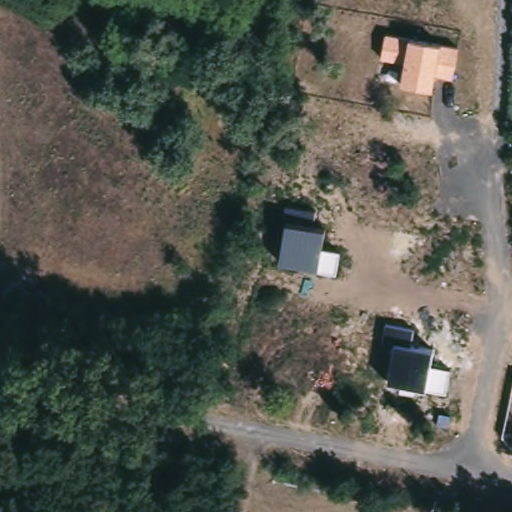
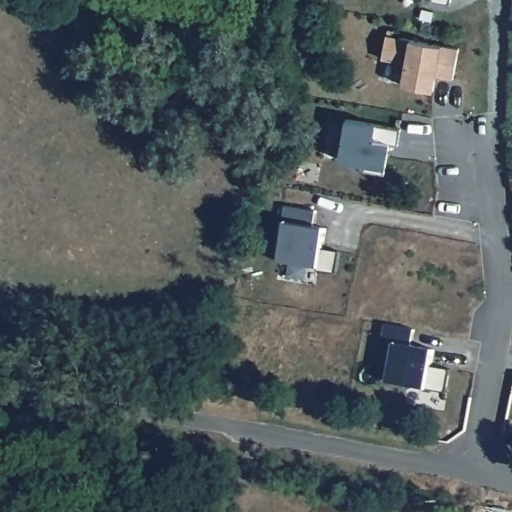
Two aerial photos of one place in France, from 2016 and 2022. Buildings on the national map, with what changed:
new [(448,4),(430,1),(430,0),(449,0),(448,4)]
unchanged [(458,46),(451,79),(436,76),(433,91),(400,84),(404,63),(382,59),(387,33),(458,46)]
new [(345,119),(400,129),(396,145),(388,144),(382,174),(362,171),(363,165),(337,160),(345,119)]
unchanged [(317,209),(315,224),(326,224),(321,248),(342,251),(337,275),(280,263),(287,221),(282,218),(285,204),(317,209)]
unchanged [(416,326),(413,345),(434,348),(431,365),(453,368),(449,393),(386,380),(393,346),(384,344),(390,318),(416,326)]

